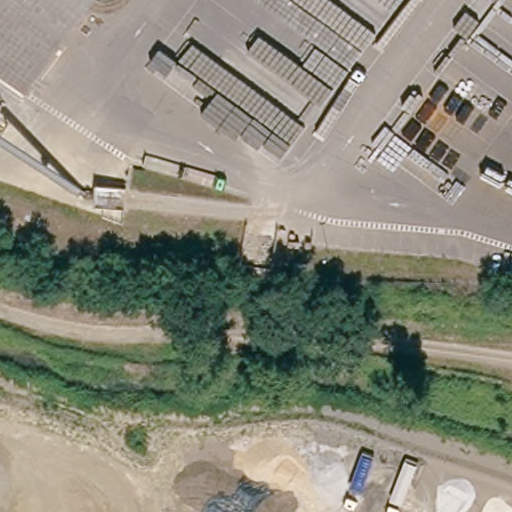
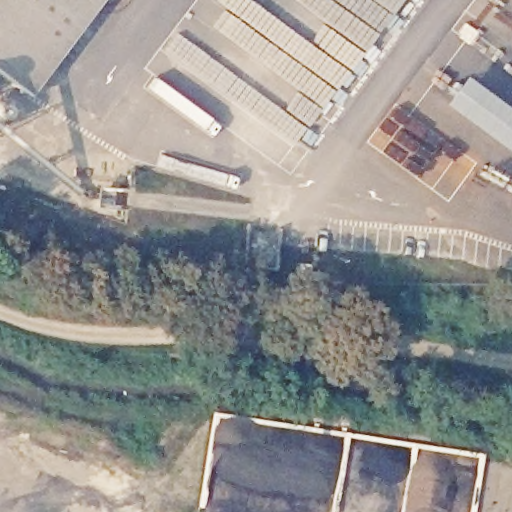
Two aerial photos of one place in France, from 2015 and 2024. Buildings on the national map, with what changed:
unchanged [(27,98),(0,79),(0,0),(99,0),(27,98)]
new [(512,112),(512,148),(511,149),(443,100),(461,75),(512,112)]

